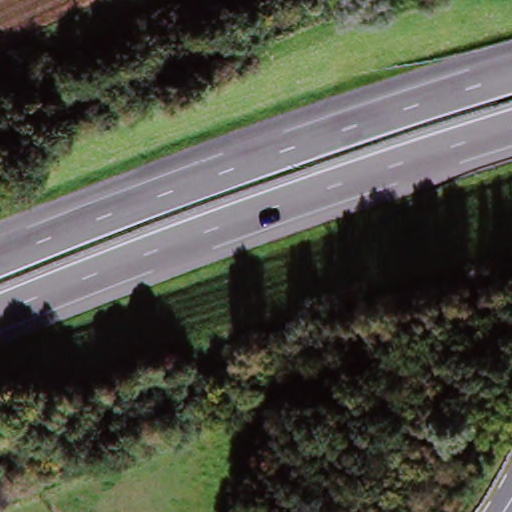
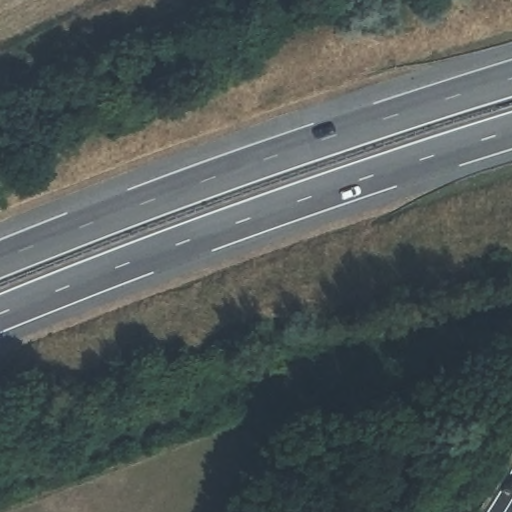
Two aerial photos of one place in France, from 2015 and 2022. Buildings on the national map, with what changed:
[]

